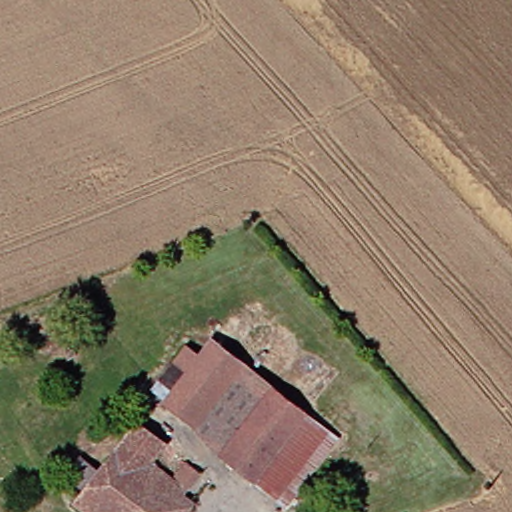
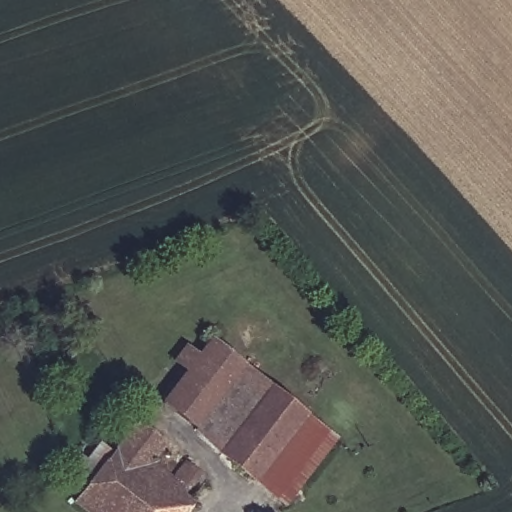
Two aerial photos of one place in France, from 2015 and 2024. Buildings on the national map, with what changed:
unchanged [(181,376),(167,363),(180,349),(193,361),(210,342),(235,365),(196,415),(188,425),(159,401),(170,390),(181,376)]
unchanged [(235,365),(295,409),(246,473),(188,425),(196,415),(235,365)]
unchanged [(295,409),(328,435),(280,496),(246,473),(295,409)]
unchanged [(172,479),(185,467),(204,477),(186,498),(173,512),(165,512),(155,505),(149,512),(83,512),(74,504),(92,479),(71,462),(85,445),(95,432),(103,423),(113,410),(126,421),(162,450),(154,462),(172,479)]
unchanged [(193,506),(188,512),(173,512),(186,498),(193,506)]
unchanged [(165,512),(149,512),(155,505),(165,512)]

